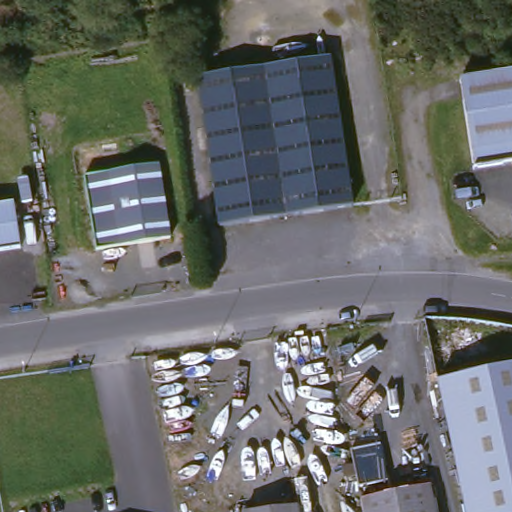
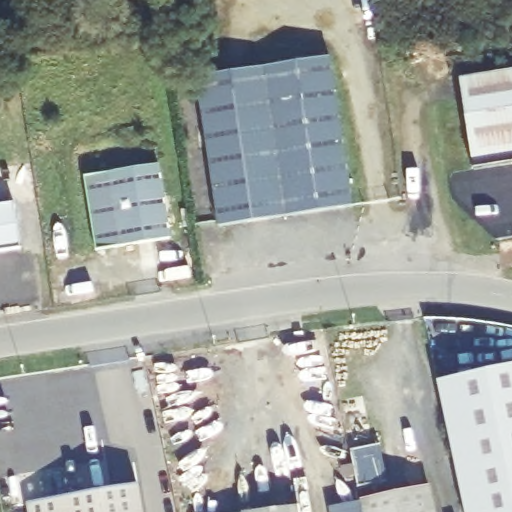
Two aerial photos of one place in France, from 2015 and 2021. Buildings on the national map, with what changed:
unchanged [(358,200),(224,220),(203,70),(335,50),(358,200)]
unchanged [(454,87),(512,79),(512,171),(467,178),(454,87)]
unchanged [(165,247),(92,258),(82,184),(154,174),(165,247)]
unchanged [(17,257),(0,260),(0,215),(10,213),(17,257)]
unchanged [(439,382),(512,367),(512,512),(464,512),(439,382)]
new [(142,486),(146,512),(26,512),(26,506),(142,486)]
unchanged [(427,492),(431,512),(358,512),(357,507),(427,492)]

